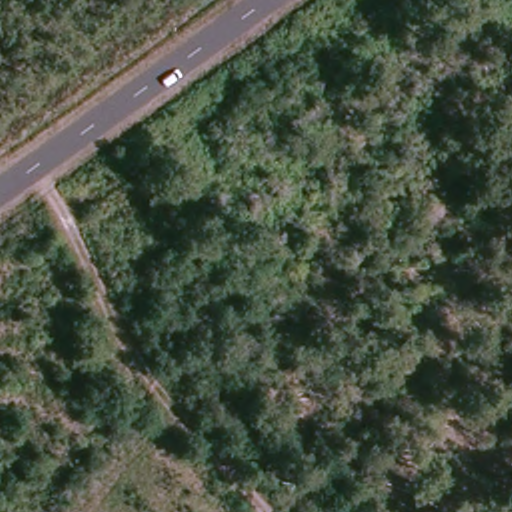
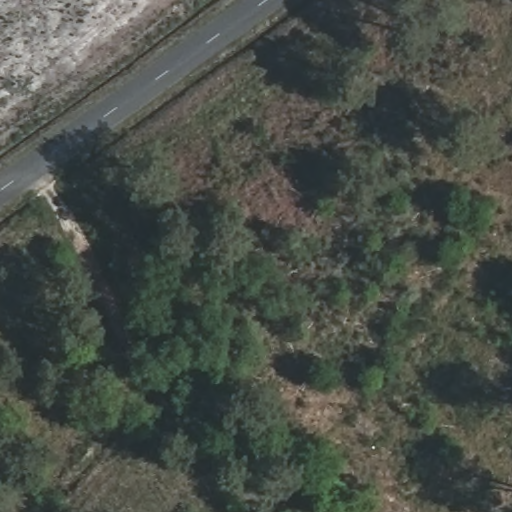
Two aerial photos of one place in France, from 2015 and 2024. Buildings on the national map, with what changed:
[]

